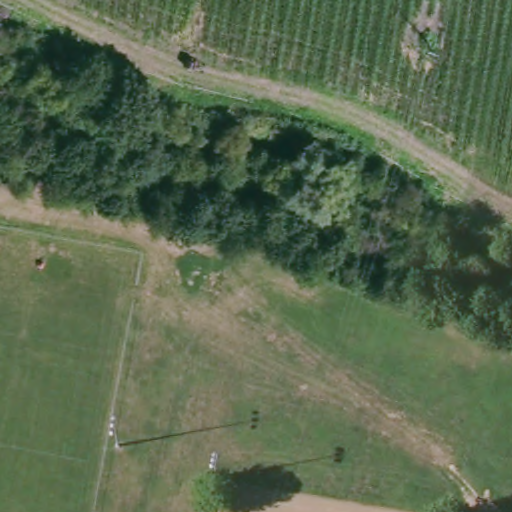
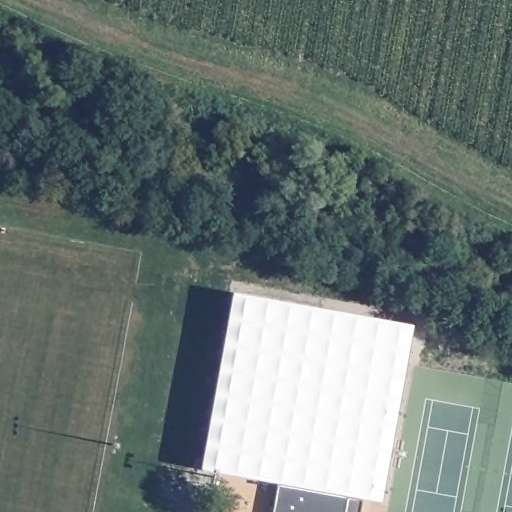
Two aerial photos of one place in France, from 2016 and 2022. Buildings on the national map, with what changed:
new [(279,483),(204,468),(237,291),(415,325),(382,502),(364,499),(362,512),(273,512),(279,483)]

